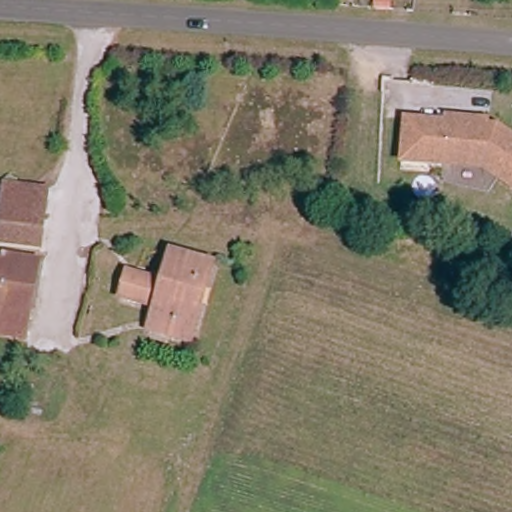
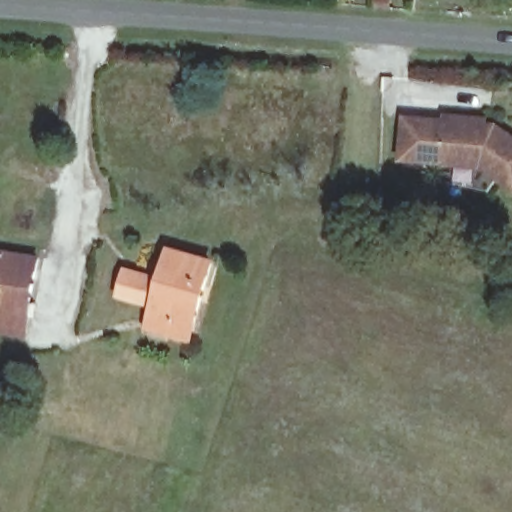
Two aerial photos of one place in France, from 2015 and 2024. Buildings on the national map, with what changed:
unchanged [(374,6),(375,0),(392,0),(392,7),(374,6)]
unchanged [(512,136),(512,187),(481,166),(403,159),(406,119),(448,122),(448,117),(467,119),(488,121),(488,126),(498,126),(512,136)]
demolished [(0,245),(0,222),(1,210),(4,188),(46,194),(39,252),(0,245)]
unchanged [(29,340),(0,336),(0,255),(41,264),(29,340)]
unchanged [(151,332),(152,325),(168,260),(210,268),(195,329),(192,342),(151,332)]
unchanged [(154,285),(149,308),(120,302),(125,278),(154,285)]

